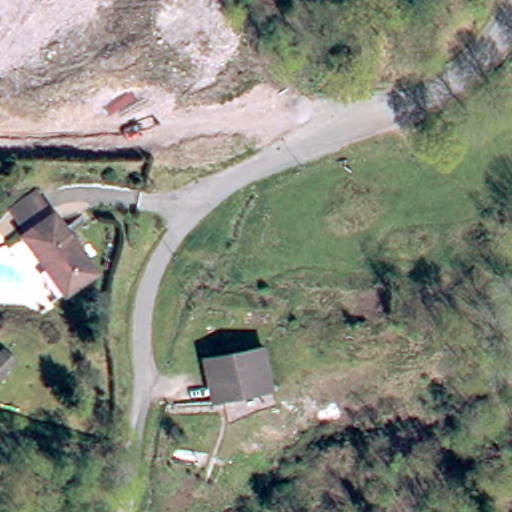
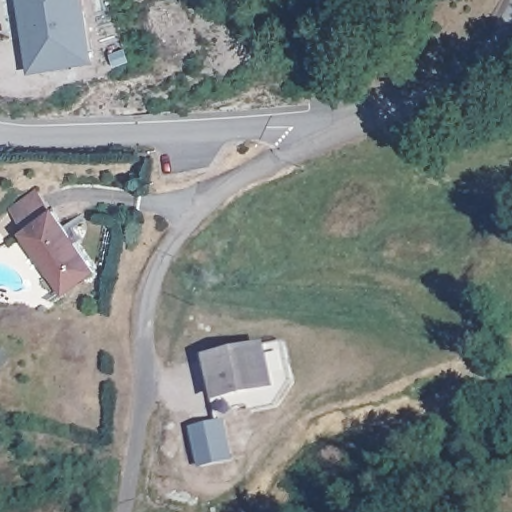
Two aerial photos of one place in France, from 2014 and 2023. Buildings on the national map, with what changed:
new [(17,0),(77,0),(87,60),(54,65),(29,69),(24,35),(17,0)]
unchanged [(74,305),(30,248),(33,245),(29,240),(19,225),(46,206),(59,223),(60,225),(105,284),(74,305)]
unchanged [(0,304),(0,286),(8,288),(5,305),(0,304)]
unchanged [(273,390),(220,403),(214,367),(267,354),(273,390)]

